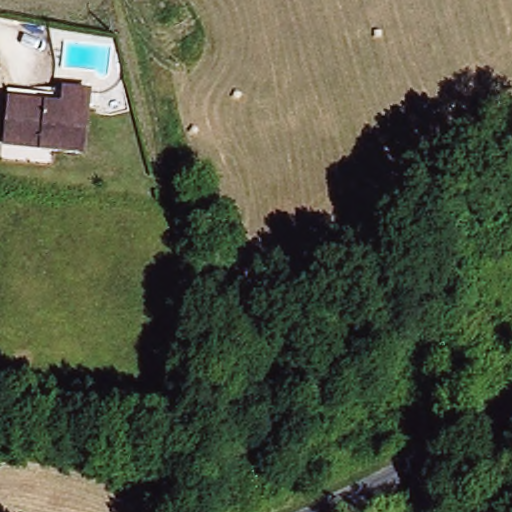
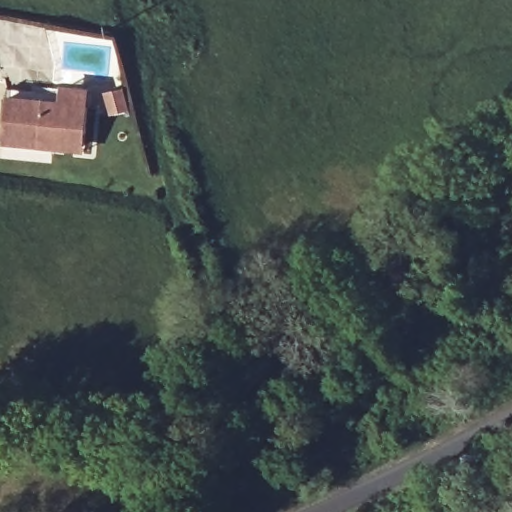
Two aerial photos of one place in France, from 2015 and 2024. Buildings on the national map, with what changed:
unchanged [(0,122),(5,86),(47,92),(48,85),(85,92),(83,106),(81,131),(80,153),(69,151),(0,140),(0,122)]

